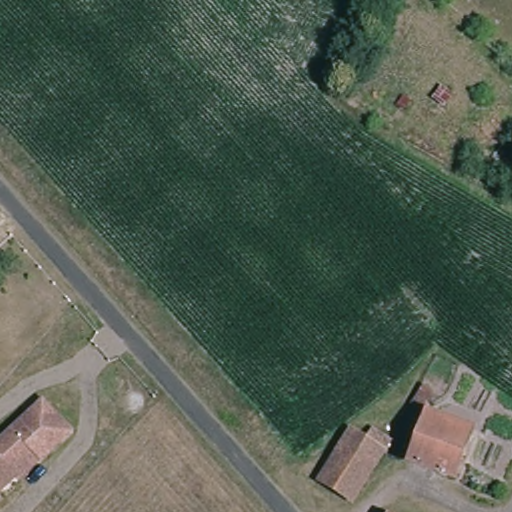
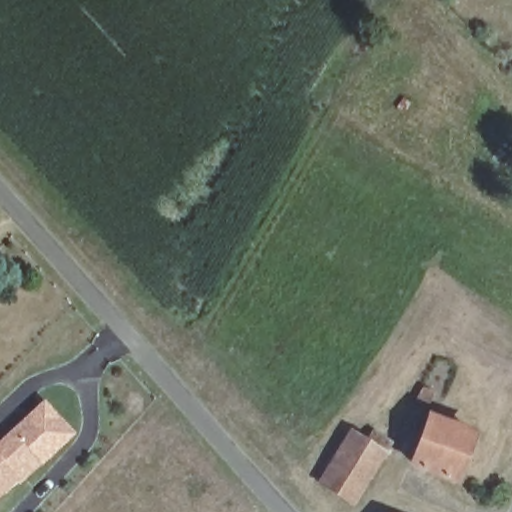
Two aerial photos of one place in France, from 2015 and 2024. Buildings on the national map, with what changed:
unchanged [(38,452),(18,474),(24,480),(0,506),(0,452),(31,418),(46,402),(51,407),(76,432),(48,462),(38,452)]
unchanged [(475,435),(456,483),(415,467),(433,418),(475,435)]
unchanged [(359,505),(320,487),(353,432),(388,454),(359,505)]

